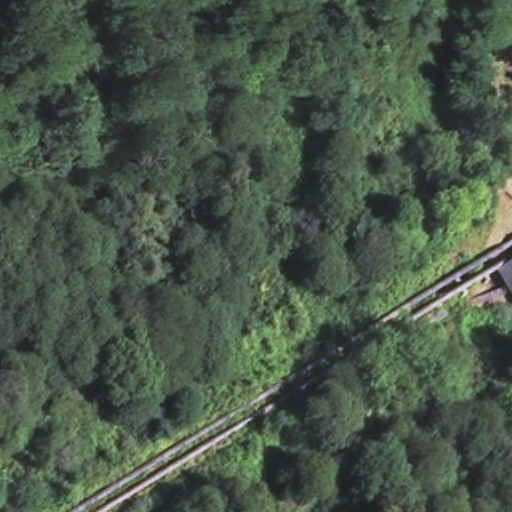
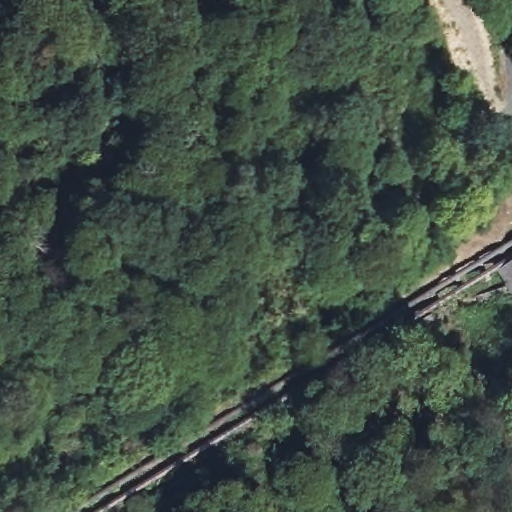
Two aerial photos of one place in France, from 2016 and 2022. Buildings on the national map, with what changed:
unchanged [(508,278),(512,276),(512,285),(508,278)]

